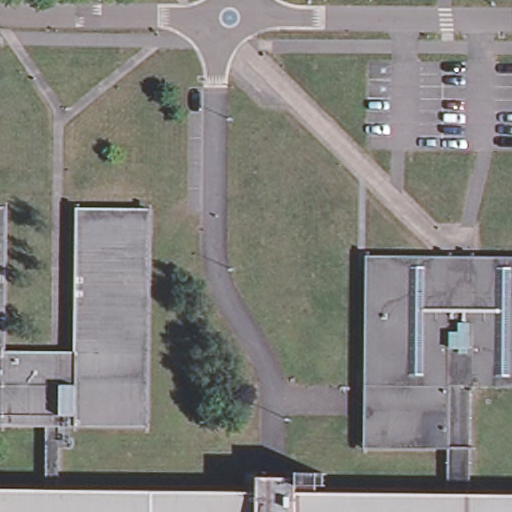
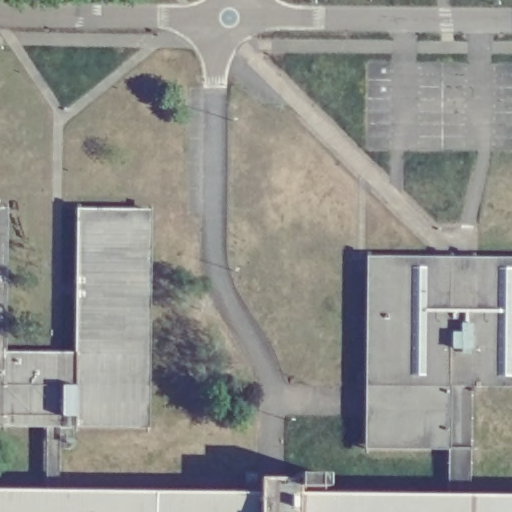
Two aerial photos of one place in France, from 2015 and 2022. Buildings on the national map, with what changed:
unchanged [(60,357),(74,357),(75,213),(142,214),(140,425),(0,424),(0,357),(49,357),(60,357)]
unchanged [(450,443),(363,442),(368,255),(512,257),(512,380),(493,379),(452,379),(450,443)]
unchanged [(328,484),(296,484),(297,470),(328,470),(328,484)]
unchanged [(0,512),(0,486),(512,491),(512,512),(0,512)]

